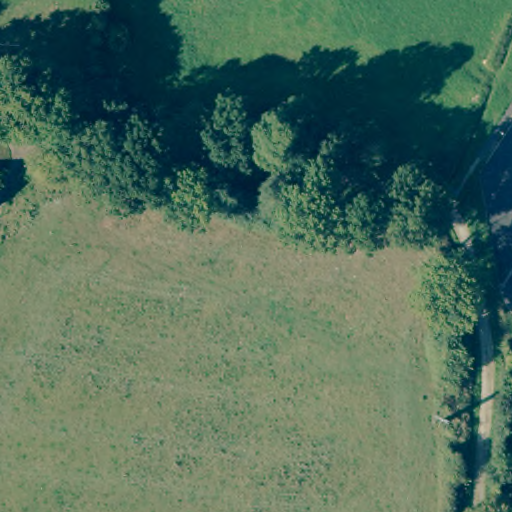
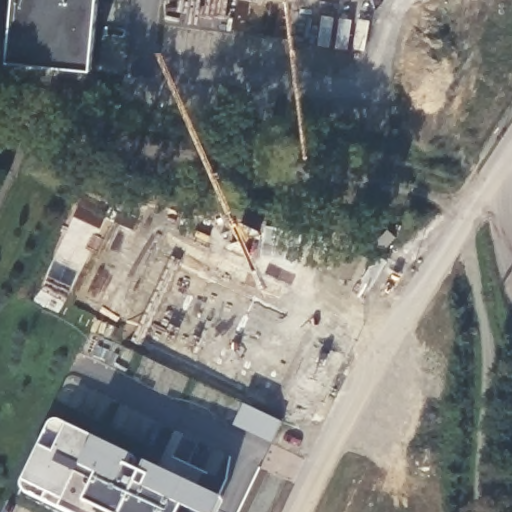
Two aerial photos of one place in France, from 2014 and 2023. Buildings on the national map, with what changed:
new [(0,68),(0,54),(4,0),(101,0),(95,76),(0,68)]
new [(72,512),(21,490),(22,484),(50,424),(57,421),(96,438),(225,502),(220,512),(72,512)]

